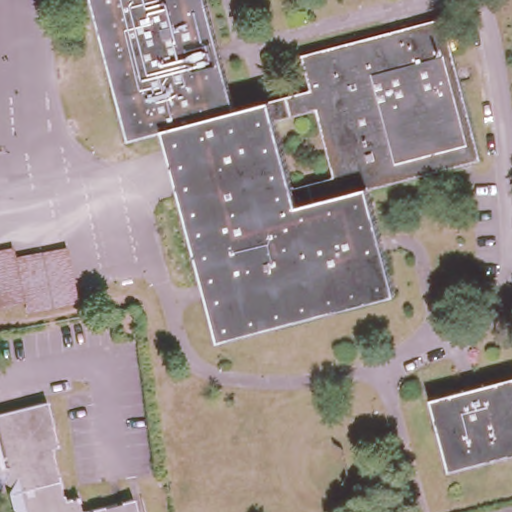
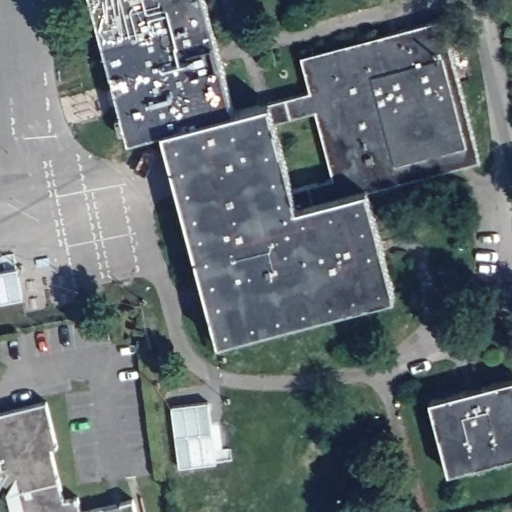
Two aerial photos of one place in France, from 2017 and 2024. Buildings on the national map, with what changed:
unchanged [(233,111),(306,92),(298,58),(442,21),(479,162),(366,190),(392,295),(215,341),(162,132),(126,140),(91,0),(205,0),(233,111)]
unchanged [(447,470),(429,396),(512,376),(512,454),(447,470)]
unchanged [(52,443),(46,445),(60,497),(71,493),(76,512),(0,512),(0,409),(40,398),(52,443)]
new [(171,406),(209,401),(217,462),(179,467),(171,406)]
unchanged [(136,498),(140,512),(76,512),(71,493),(83,492),(93,509),(136,498)]

